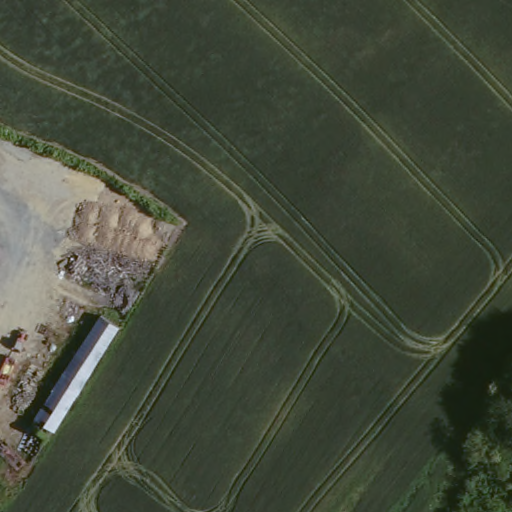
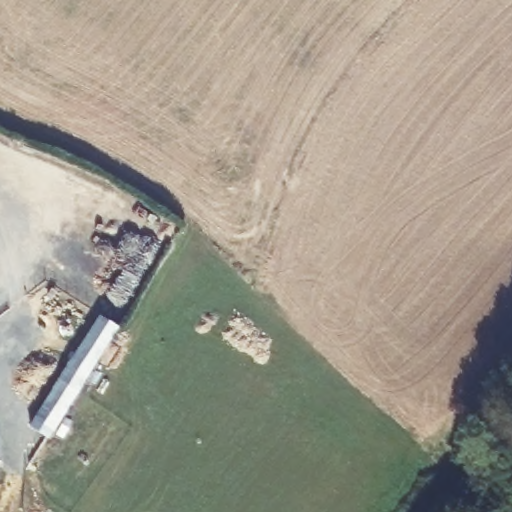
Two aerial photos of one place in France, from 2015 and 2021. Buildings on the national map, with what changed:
unchanged [(123,318),(35,452),(17,439),(103,306),(123,318)]

